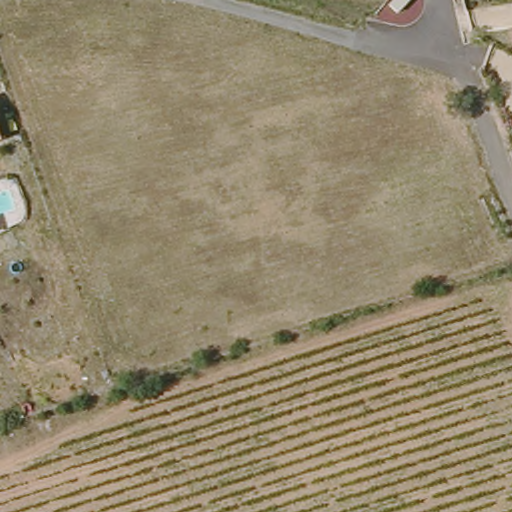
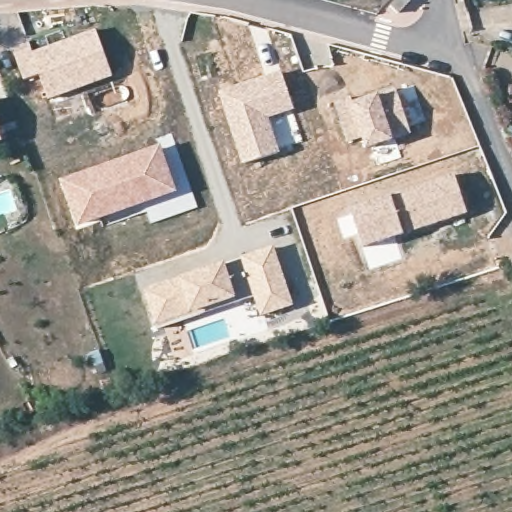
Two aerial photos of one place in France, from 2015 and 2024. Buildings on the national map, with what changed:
new [(28,42),(32,51),(96,28),(113,76),(48,99),(40,75),(23,80),(12,47),(28,42)]
new [(280,70),(295,110),(269,119),(280,153),(242,164),(218,91),(280,70)]
new [(350,95),(353,102),(377,93),(395,88),(410,133),(393,139),(366,148),(362,135),(348,141),(333,101),(350,95)]
unchanged [(7,138),(0,141),(0,122),(7,138)]
new [(160,144),(177,191),(78,227),(62,179),(160,144)]
new [(453,175),(466,211),(363,247),(350,208),(453,175)]
new [(180,278),(223,262),(275,246),(294,306),(262,317),(252,297),(235,304),(233,296),(190,311),(157,321),(145,287),(180,278)]

